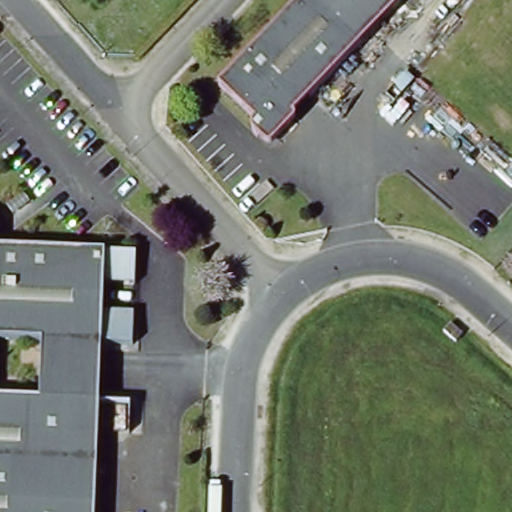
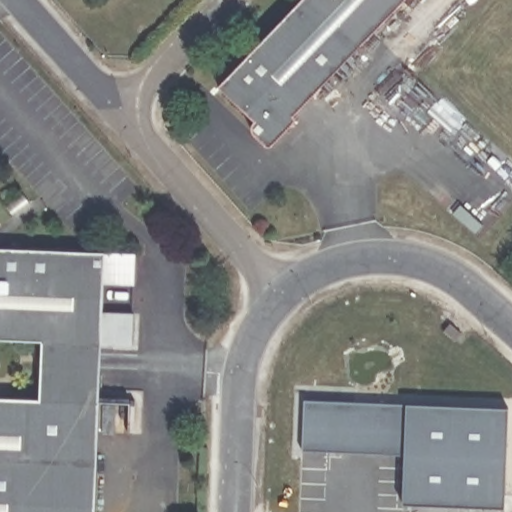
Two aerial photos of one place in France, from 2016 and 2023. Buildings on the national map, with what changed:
unchanged [(369,39),(304,107),(279,135),(270,127),(264,134),(263,134),(261,132),(260,131),(259,130),(259,129),(258,127),(258,126),(258,125),(258,123),(258,122),(258,121),(259,120),(259,119),(260,117),(223,83),(302,0),(406,0),(369,39)]
unchanged [(35,206),(18,218),(11,209),(28,196),(35,206)]
unchanged [(137,251),(136,281),(105,280),(104,311),(135,312),(134,342),(103,342),(101,400),(97,512),(0,512),(0,246),(106,250),(137,251)]
unchanged [(448,332),(454,323),(467,334),(459,342),(448,332)]
new [(305,400),(408,405),(508,409),(504,507),(402,503),(404,454),(303,450),(305,400)]

